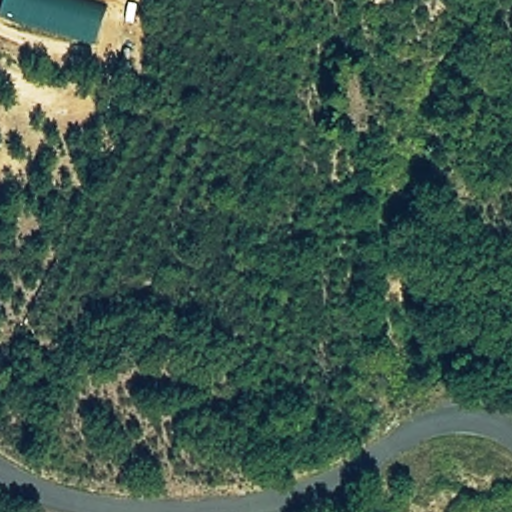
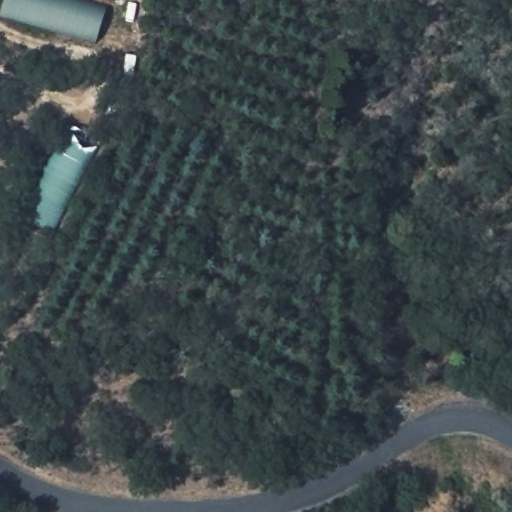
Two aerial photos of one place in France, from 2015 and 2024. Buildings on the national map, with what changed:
unchanged [(0,16),(0,12),(4,0),(89,0),(110,6),(98,43),(0,16)]
new [(58,234),(22,217),(65,125),(101,141),(58,234)]

